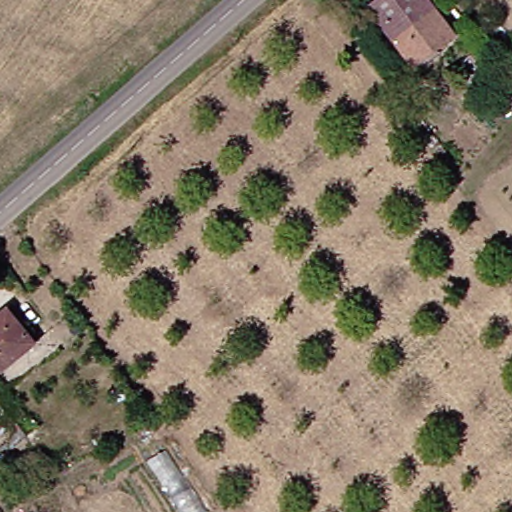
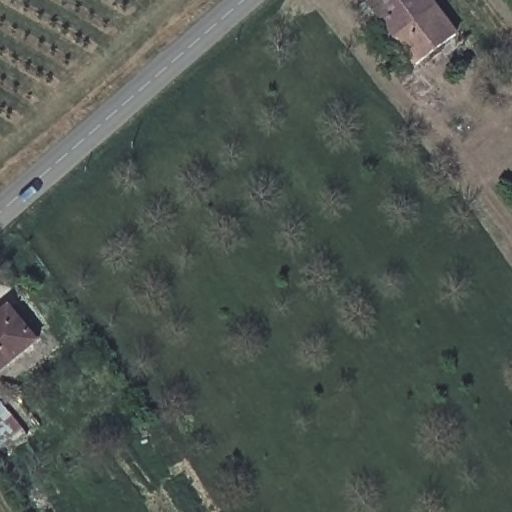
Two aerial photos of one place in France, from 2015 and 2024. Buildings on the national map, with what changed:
unchanged [(425,0),(457,35),(419,70),(368,11),(380,0),(425,0)]
unchanged [(491,104),(473,78),(479,74),(470,60),(484,51),(494,64),(512,88),(512,115),(502,121),(491,104)]
unchanged [(10,314),(34,344),(0,370),(0,321),(10,314)]
unchanged [(1,395),(32,434),(2,456),(0,453),(0,396),(1,395)]

